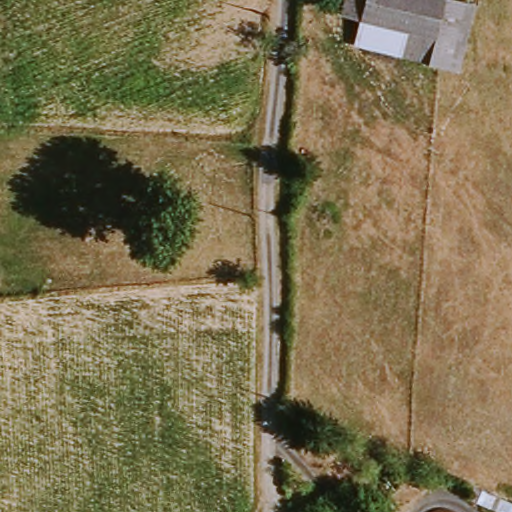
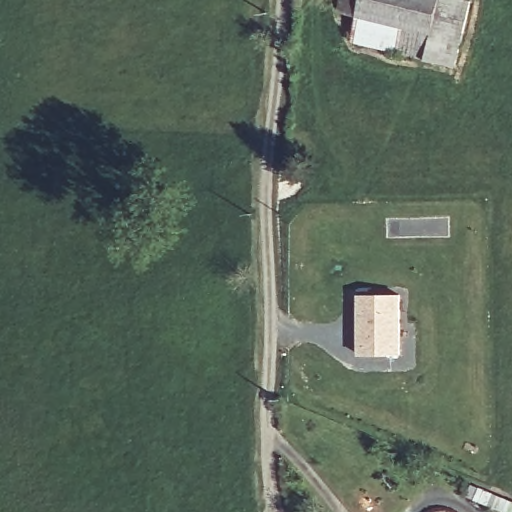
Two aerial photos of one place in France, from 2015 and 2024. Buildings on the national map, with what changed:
unchanged [(348,0),(456,0),(472,4),(458,65),(357,43),(363,15),(346,11),(348,0)]
new [(402,356),(359,356),(358,295),(402,295),(402,356)]
unchanged [(474,486),(512,502),(512,512),(501,512),(470,497),(474,486)]

